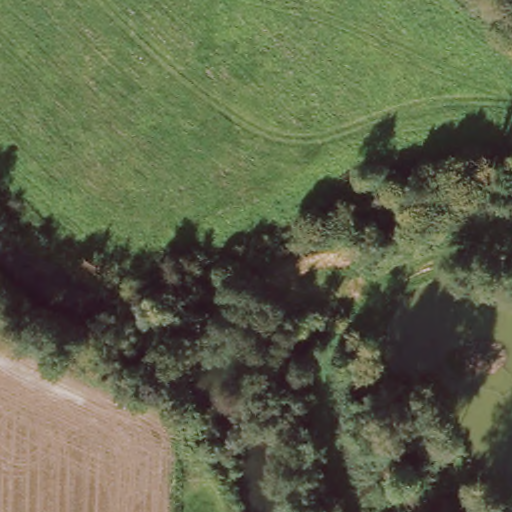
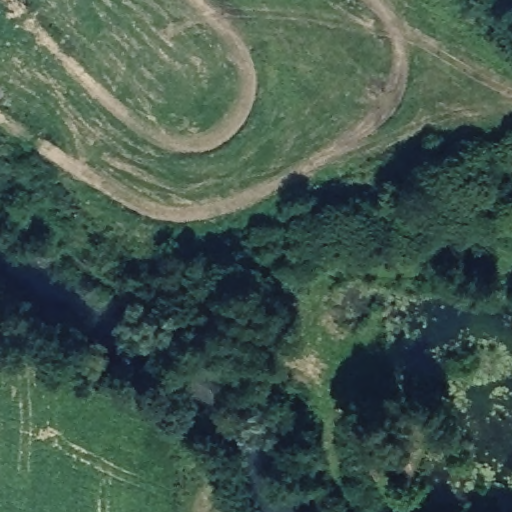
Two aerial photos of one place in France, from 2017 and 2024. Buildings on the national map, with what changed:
[]

